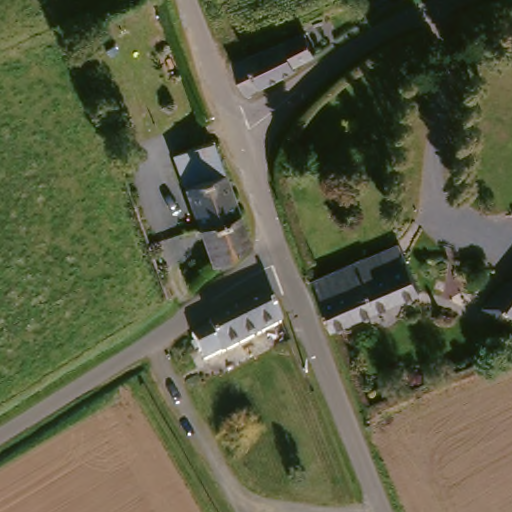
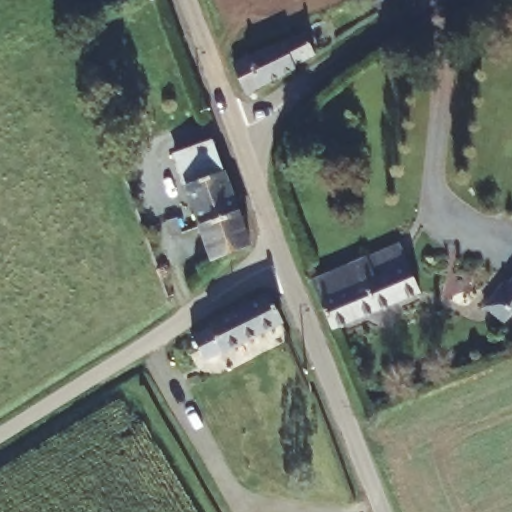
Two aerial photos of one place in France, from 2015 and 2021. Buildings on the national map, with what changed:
unchanged [(246,88),(235,59),(306,24),(318,49),(246,88)]
unchanged [(256,241),(220,254),(183,150),(218,136),(256,241)]
unchanged [(407,242),(426,290),(337,327),(317,278),(407,242)]
unchanged [(485,302),(495,290),(507,276),(512,280),(512,312),(506,319),(485,302)]
unchanged [(285,319),(228,349),(227,348),(209,357),(196,332),(209,324),(208,323),(272,289),(284,318),(285,319)]

